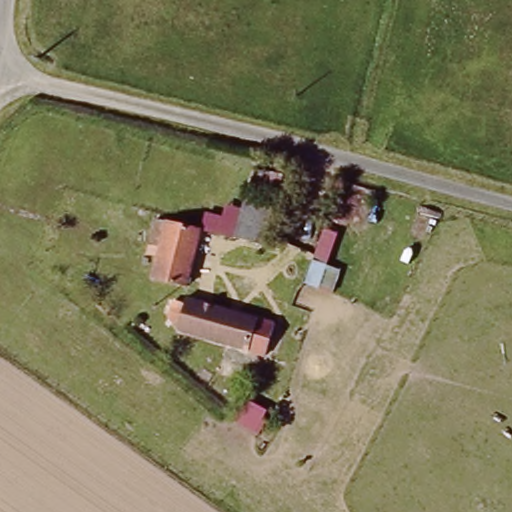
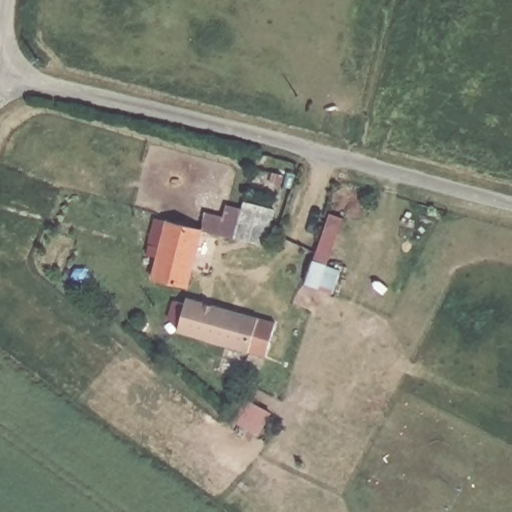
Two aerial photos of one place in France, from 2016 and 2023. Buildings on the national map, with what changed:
unchanged [(185,287),(151,278),(156,258),(144,254),(154,218),(201,231),(185,287)]
unchanged [(259,354),(162,325),(171,299),(181,302),(184,295),(270,323),(259,354)]

